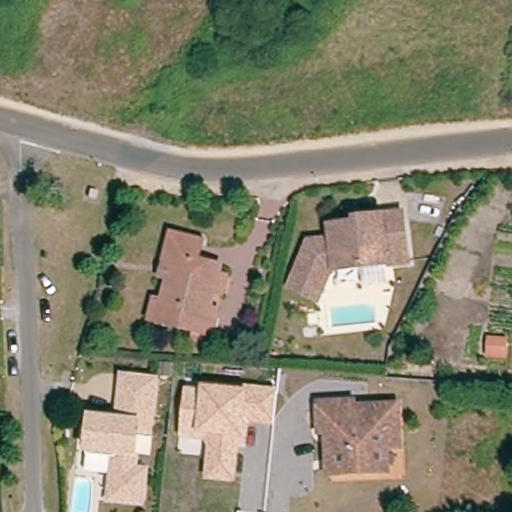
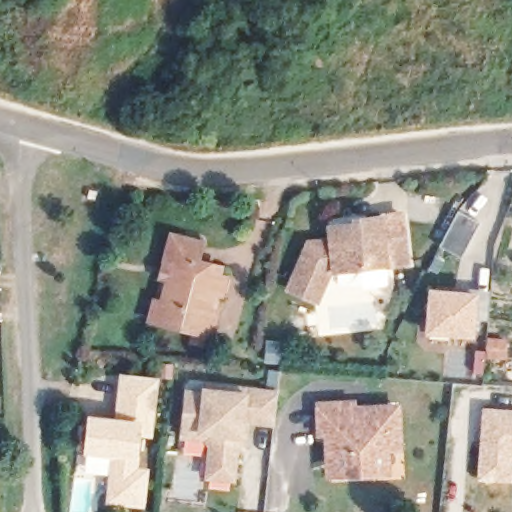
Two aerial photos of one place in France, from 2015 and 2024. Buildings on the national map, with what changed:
unchanged [(291,277),(305,246),(326,244),(325,236),(325,228),(353,225),(353,218),(362,217),(397,214),(403,263),(327,272),(320,290),(315,303),(286,291),(291,277)]
unchanged [(217,313),(211,339),(149,325),(154,305),(160,306),(165,286),(158,284),(163,264),(169,240),(201,247),(196,266),(217,272),(215,280),(225,282),(221,298),(212,296),(209,311),(217,313)]
new [(457,295),(457,290),(493,292),(491,323),(476,322),(475,338),(430,336),(432,293),(457,295)]
unchanged [(113,457),(85,455),(89,417),(117,421),(121,377),(152,381),(146,432),(135,431),(131,477),(141,478),(139,502),(109,499),(113,457)]
unchanged [(201,385),(245,390),(245,385),(277,387),(274,426),(250,425),(249,449),(239,448),(235,483),(204,480),(207,445),(203,440),(181,438),(185,387),(201,385)]
unchanged [(328,438),(320,438),(319,408),(353,407),(354,415),(398,412),(401,452),(387,453),(388,478),(338,482),(330,482),(328,438)]
new [(483,407),(512,409),(512,482),(478,480),(483,407)]

